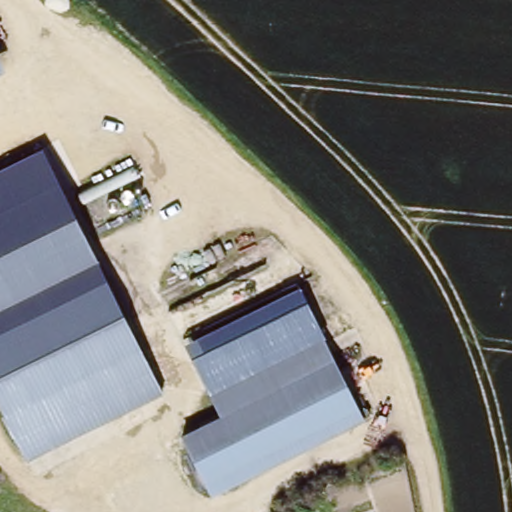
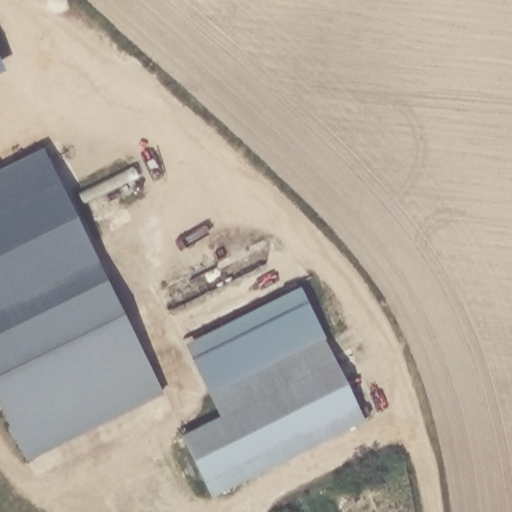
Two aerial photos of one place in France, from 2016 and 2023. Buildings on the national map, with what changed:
unchanged [(0,69),(0,57),(5,67),(0,69)]
unchanged [(82,227),(0,267),(0,190),(50,165),(82,227)]
unchanged [(164,395),(25,462),(0,410),(0,267),(82,227),(164,395)]
unchanged [(188,346),(300,287),(325,337),(317,342),(213,399),(188,346)]
unchanged [(317,342),(330,367),(220,427),(206,403),(317,342)]
unchanged [(360,419),(213,502),(183,447),(220,427),(330,367),(360,419)]

